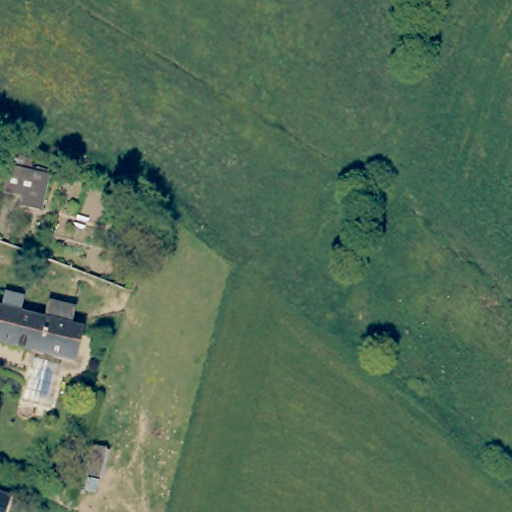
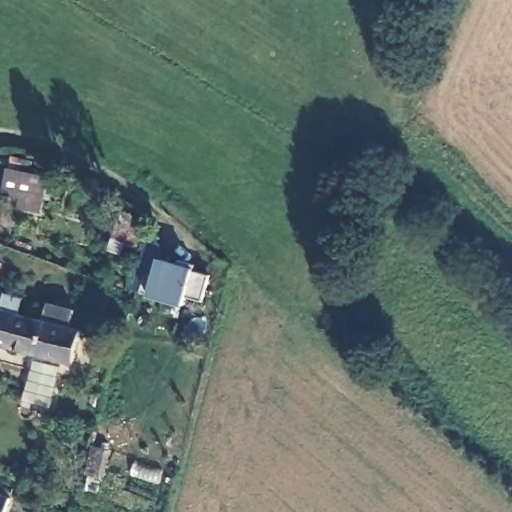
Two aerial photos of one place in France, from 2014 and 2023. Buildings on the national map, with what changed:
unchanged [(49,180),(42,212),(21,208),(22,198),(6,194),(11,171),(49,180)]
unchanged [(0,233),(0,219),(2,220),(0,233)]
new [(150,294),(140,292),(145,273),(155,275),(159,257),(195,266),(194,271),(210,274),(204,299),(187,296),(185,303),(150,294)]
unchanged [(20,303),(18,309),(16,318),(40,324),(43,314),(45,307),(71,314),(70,319),(66,331),(78,334),(70,366),(0,348),(0,306),(2,298),(20,303)]
unchanged [(0,506),(0,492),(5,494),(0,506)]

